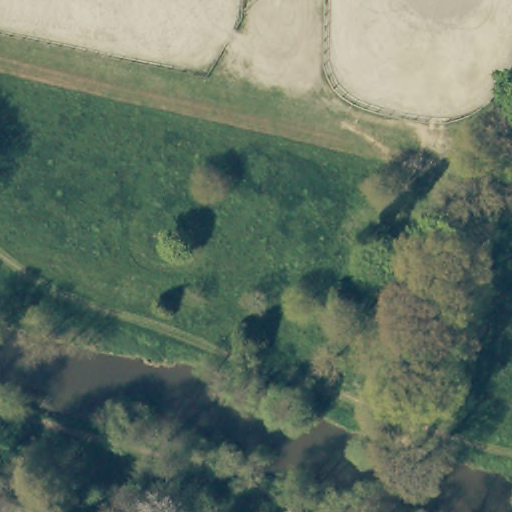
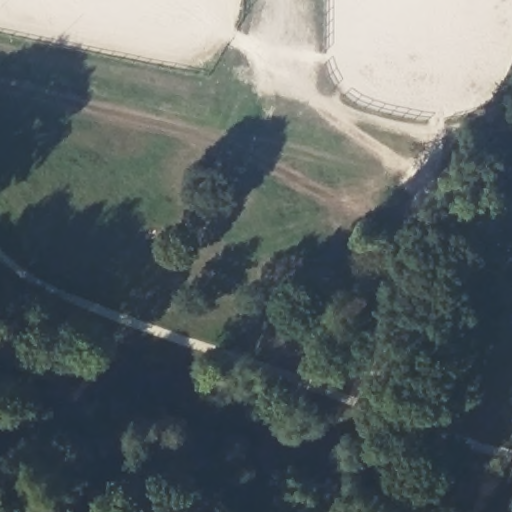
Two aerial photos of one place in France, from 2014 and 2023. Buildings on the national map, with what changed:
[]

